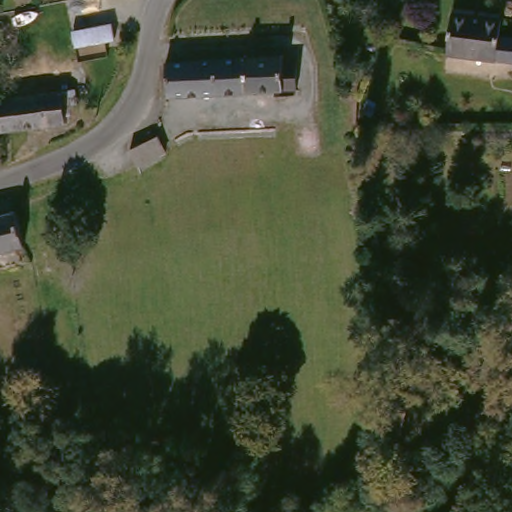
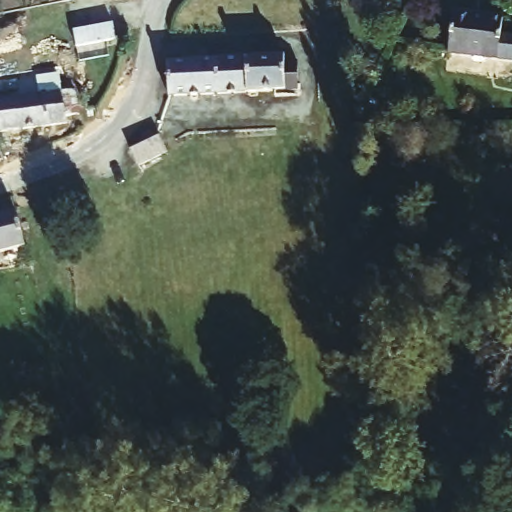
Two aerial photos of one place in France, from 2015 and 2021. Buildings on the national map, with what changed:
unchanged [(502,12),(500,30),(512,31),(512,56),(448,47),(452,5),(502,12)]
unchanged [(285,55),(286,61),(297,60),(298,89),(169,94),(167,63),(167,62),(285,55)]
unchanged [(76,90),(81,115),(67,118),(68,124),(0,133),(0,101),(76,90)]
unchanged [(167,152),(140,165),(130,150),(156,137),(157,134),(167,152)]
unchanged [(0,248),(0,212),(21,207),(31,240),(0,248)]

